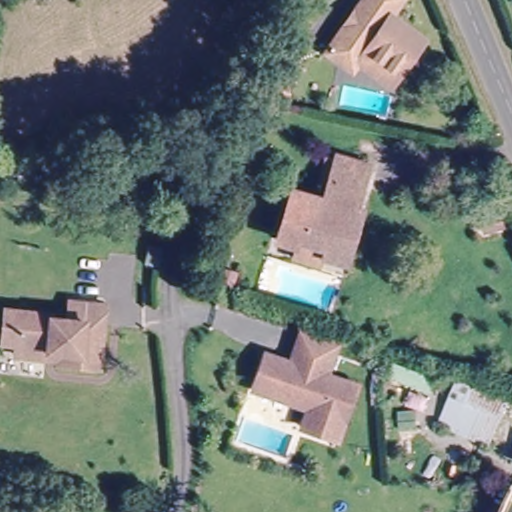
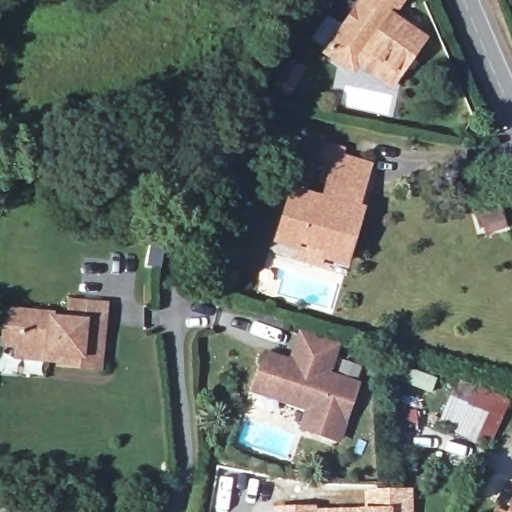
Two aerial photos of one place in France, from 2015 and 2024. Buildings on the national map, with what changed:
unchanged [(398,0),(387,15),(421,37),(397,71),(372,55),(360,56),(350,70),(323,52),(359,0),(398,0)]
unchanged [(327,197),(340,154),(369,161),(357,202),(364,205),(348,260),(324,255),(326,245),(300,237),(298,243),(279,237),(293,188),(327,197)]
unchanged [(18,347),(4,346),(6,312),(20,313),(54,315),(53,320),(72,321),(73,305),(107,307),(103,371),(67,370),(67,365),(17,362),(18,347)]
unchanged [(301,332),(331,342),(322,370),(356,384),(338,436),(303,425),(309,406),(270,391),(254,385),(266,351),(281,357),(291,360),(301,332)]
unchanged [(505,398),(487,443),(471,436),(437,423),(455,376),(489,391),(505,398)]
new [(272,507),(316,506),(317,511),(364,508),(362,490),(412,488),(412,512),(272,512),(272,507)]
unchanged [(496,505),(510,512),(493,512),(496,505)]
unchanged [(512,510),(512,512),(511,512),(512,510)]

